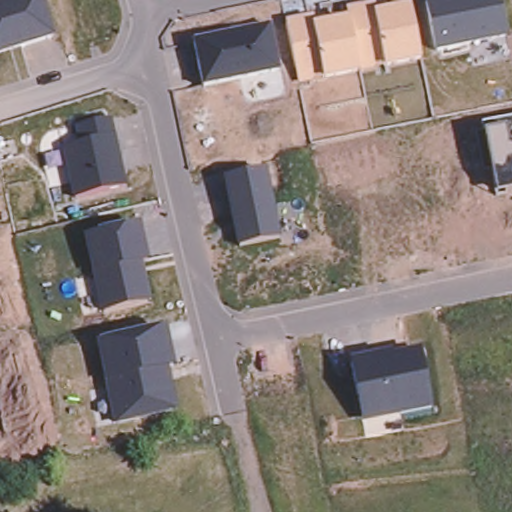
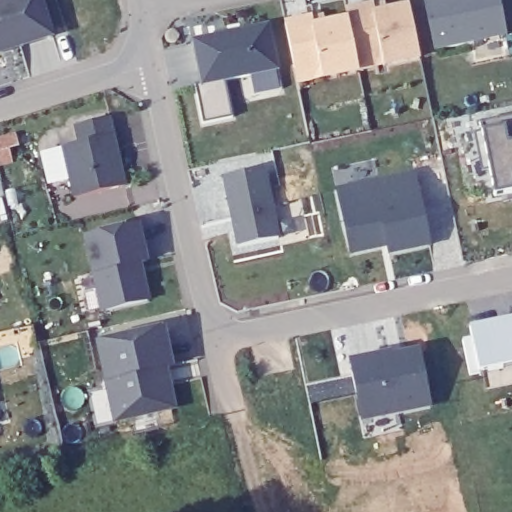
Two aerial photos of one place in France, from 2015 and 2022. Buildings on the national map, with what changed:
unchanged [(0,52),(0,0),(4,0),(5,1),(8,0),(41,0),(52,36),(0,52)]
unchanged [(436,50),(426,2),(435,0),(500,0),(507,35),(436,50)]
unchanged [(352,54),(343,12),(369,6),(371,16),(405,8),(415,56),(380,64),(355,69),(352,54)]
unchanged [(291,67),(282,24),(308,19),(310,28),(344,21),(354,69),(319,76),(294,82),(291,67)]
unchanged [(270,26),(279,70),(203,86),(194,42),(270,26)]
unchanged [(125,185),(75,197),(63,146),(80,142),(76,125),(110,117),(125,185)]
unchanged [(482,125),(512,119),(512,192),(496,195),(484,135),(482,125)]
new [(18,135),(21,149),(12,151),(16,165),(1,169),(0,165),(0,139),(18,135)]
unchanged [(225,177),(264,169),(279,237),(240,246),(236,231),(234,220),(225,177)]
new [(415,171),(433,247),(389,256),(387,249),(351,257),(336,188),(415,171)]
new [(3,201),(8,217),(0,219),(0,202),(3,201)]
unchanged [(86,237),(139,226),(148,262),(141,263),(149,300),(103,310),(86,237)]
new [(471,329),(512,320),(512,367),(470,376),(462,344),(473,341),(471,329)]
unchanged [(101,345),(163,331),(171,367),(165,367),(174,407),(118,420),(101,345)]
unchanged [(391,353),(392,357),(420,351),(431,407),(401,413),(400,410),(362,417),(351,362),(391,353)]

